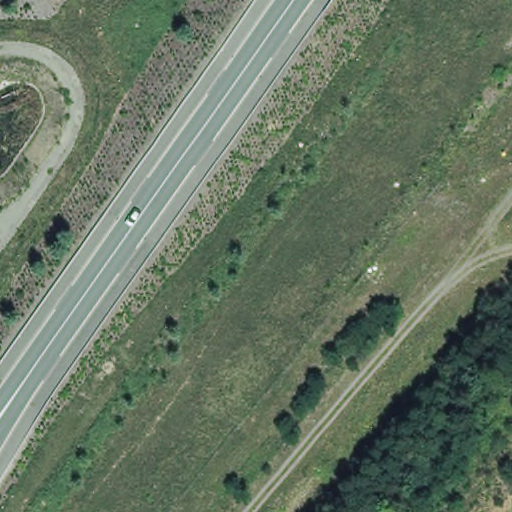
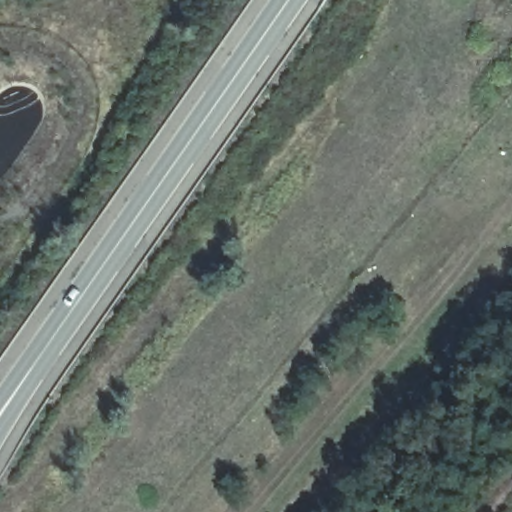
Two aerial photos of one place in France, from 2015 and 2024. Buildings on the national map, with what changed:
[]

